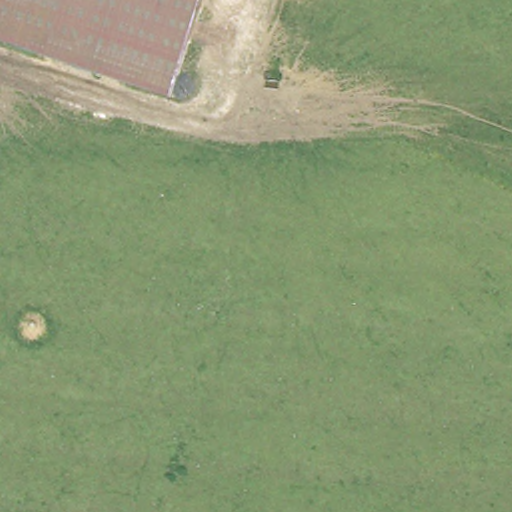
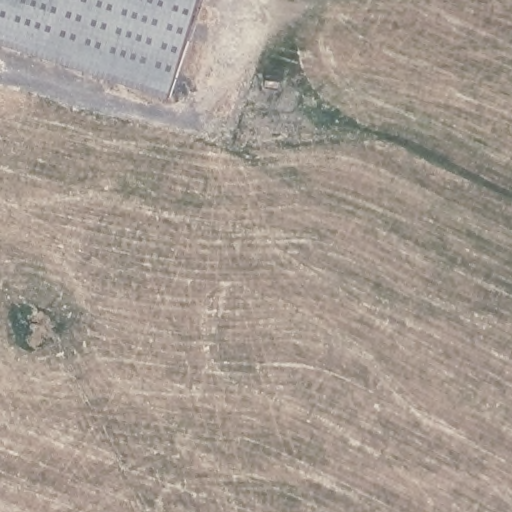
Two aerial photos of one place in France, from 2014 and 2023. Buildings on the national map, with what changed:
unchanged [(35,56),(0,44),(0,0),(204,0),(172,100),(35,56)]

